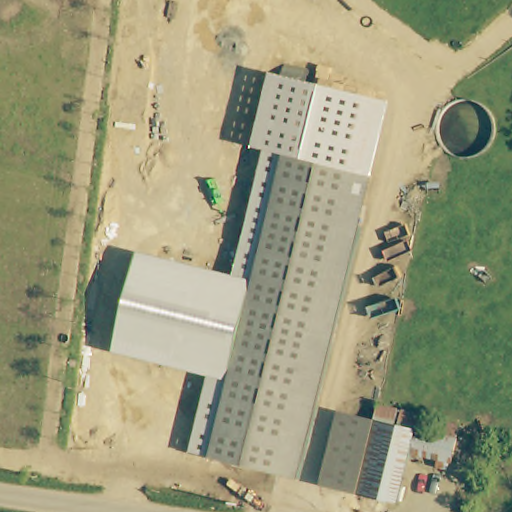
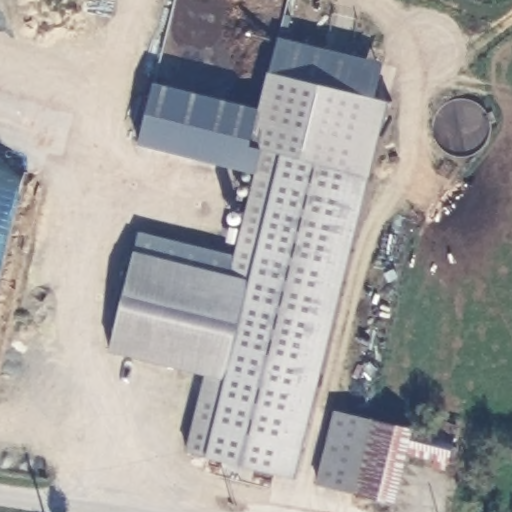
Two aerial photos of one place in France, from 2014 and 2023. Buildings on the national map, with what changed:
new [(281,38),(383,64),(378,100),(272,73),(281,38)]
unchanged [(361,174),(293,157),(215,457),(189,450),(207,376),(112,352),(136,252),(230,275),(260,150),(252,147),(272,73),(388,102),(371,177),(295,477),(283,474),(361,174)]
new [(252,147),(260,150),(254,174),(138,146),(155,83),(262,109),(252,147)]
unchanged [(215,457),(293,157),(361,174),(283,474),(215,457)]
new [(136,252),(139,232),(235,252),(230,275),(136,252)]
unchanged [(324,493),(335,417),(371,422),(357,497),(324,493)]
unchanged [(357,497),(371,422),(396,426),(414,428),(409,455),(401,504),(382,501),(357,497)]
unchanged [(454,435),(451,461),(409,455),(414,428),(454,435)]

